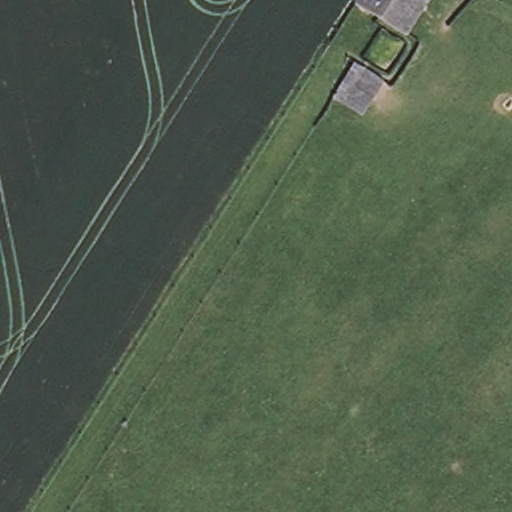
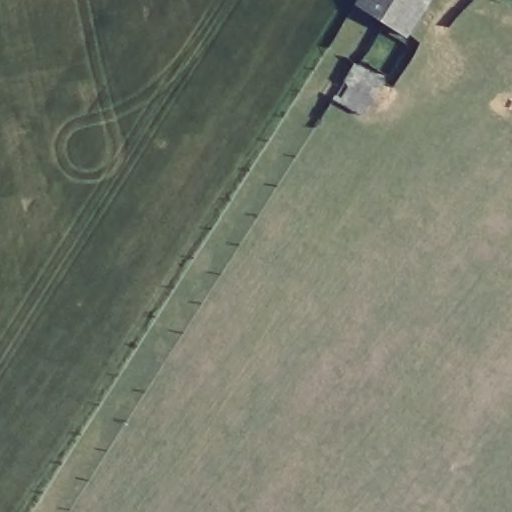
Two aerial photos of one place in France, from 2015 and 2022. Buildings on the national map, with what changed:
unchanged [(424,0),(403,37),(349,2),(351,0),(424,0)]
unchanged [(352,58),(381,79),(360,113),(332,94),(352,58)]

